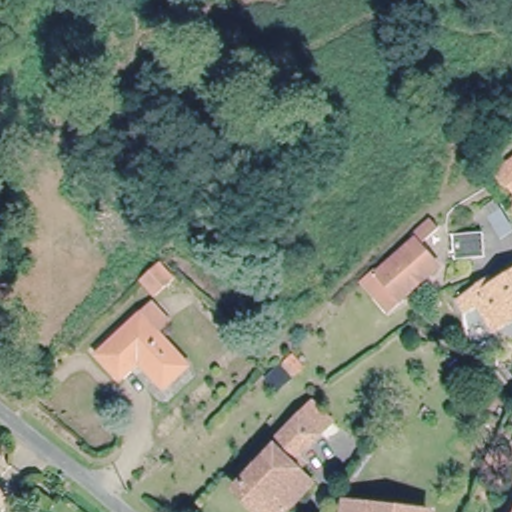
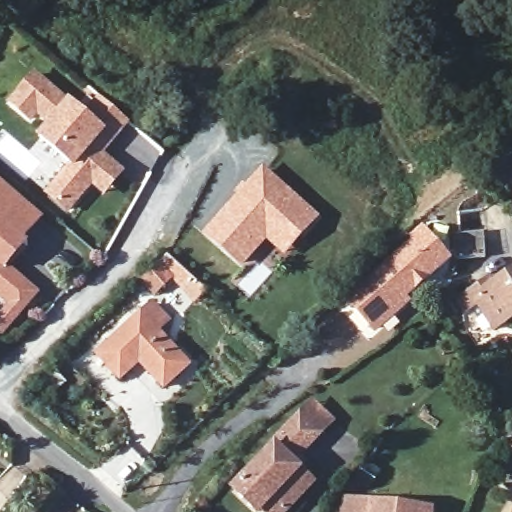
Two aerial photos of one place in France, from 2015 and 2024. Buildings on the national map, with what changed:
new [(50,190),(66,172),(76,159),(44,132),(56,118),(40,105),(34,113),(15,97),(38,70),(88,112),(99,100),(87,90),(90,86),(102,96),(129,119),(113,138),(110,136),(99,149),(110,159),(123,169),(106,189),(94,178),(85,188),(70,207),(50,190)]
unchanged [(498,171),(512,160),(512,191),(498,171)]
new [(268,235),(242,262),(209,232),(242,196),(245,199),(250,193),(248,190),(264,171),(317,218),(301,236),(286,252),(268,235)]
new [(43,215),(24,237),(20,233),(0,257),(0,179),(23,199),(43,215)]
unchanged [(512,199),(512,206),(509,201),(512,199)]
unchanged [(424,238),(417,245),(434,266),(387,307),(364,281),(411,239),(407,234),(414,227),(424,238)]
unchanged [(476,230),(479,254),(451,257),(449,233),(476,230)]
new [(0,326),(0,321),(16,302),(0,288),(0,257),(31,284),(39,290),(5,330),(0,326)]
unchanged [(159,262),(174,277),(154,295),(141,280),(159,262)]
unchanged [(499,329),(482,301),(469,309),(461,296),(489,277),(494,275),(498,281),(512,271),(512,321),(499,329)]
unchanged [(164,385),(139,359),(121,377),(99,352),(143,313),(144,315),(158,302),(170,317),(158,329),(189,363),(164,385)]
unchanged [(254,510),(232,487),(235,484),(270,448),(268,446),(297,416),(309,402),(329,422),(316,435),(293,458),(299,463),(293,469),(307,483),(282,509),(279,512),(264,512),(258,506),(254,510)]
unchanged [(511,442),(512,441),(512,444),(511,442)]
unchanged [(432,512),(347,512),(349,500),(432,512)]

